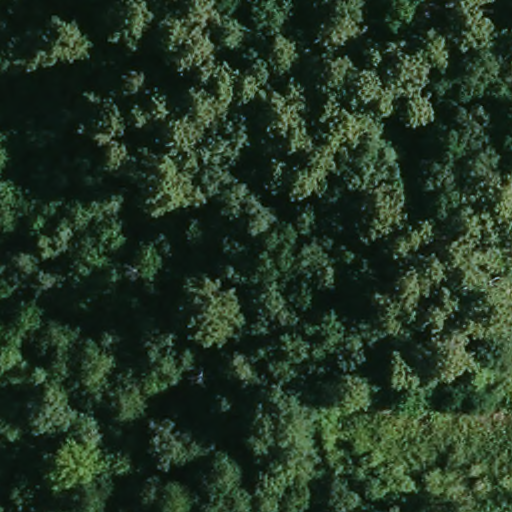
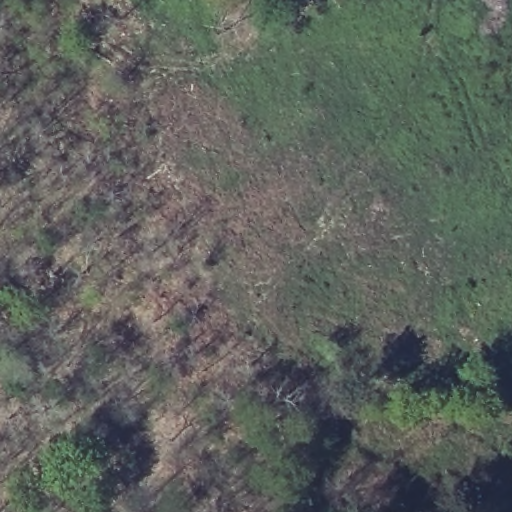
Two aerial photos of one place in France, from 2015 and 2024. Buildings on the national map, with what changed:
unchanged [(509,170),(505,200),(489,199),(494,167),(509,170)]

